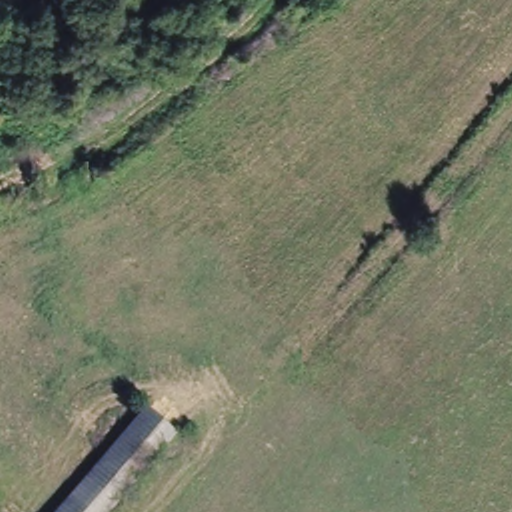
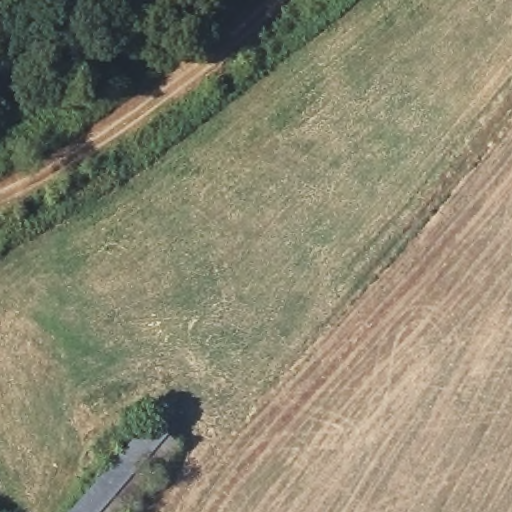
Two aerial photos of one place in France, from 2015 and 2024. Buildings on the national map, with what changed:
unchanged [(180,447),(122,512),(66,512),(147,418),(180,447)]

